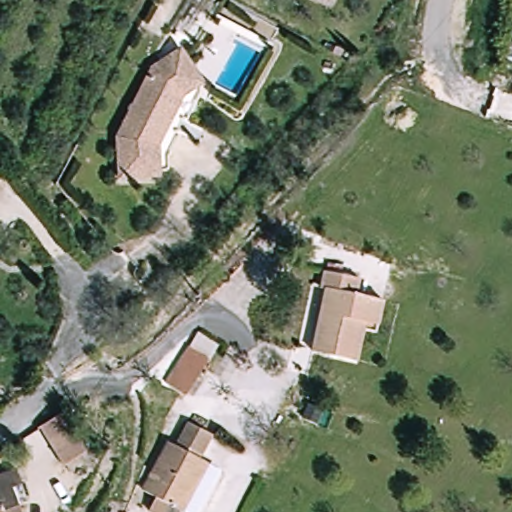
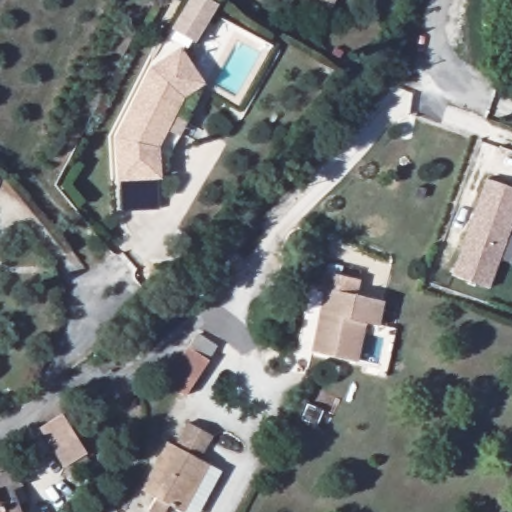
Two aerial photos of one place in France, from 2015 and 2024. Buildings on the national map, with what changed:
new [(195,44),(170,29),(188,0),(212,0),(218,4),(195,44)]
unchanged [(323,5),(314,0),(326,0),(323,5)]
unchanged [(157,172),(117,175),(117,167),(115,135),(151,69),(180,50),(200,84),(197,86),(180,96),(155,142),(156,167),(157,172)]
unchanged [(198,88),(199,92),(198,95),(162,162),(162,164),(159,166),(156,167),(155,142),(180,96),(197,86),(198,88)]
new [(487,177),(512,185),(512,220),(489,286),(452,274),(487,177)]
unchanged [(324,290),(320,288),(326,270),(359,281),(355,295),(380,305),(372,328),(353,322),(341,360),(305,347),(324,290)]
unchanged [(165,385),(197,335),(217,349),(209,360),(187,398),(165,385)]
unchanged [(68,412),(95,460),(65,473),(42,428),(68,412)]
unchanged [(170,445),(183,420),(207,432),(193,457),(203,462),(177,512),(137,491),(165,442),(170,445)]
unchanged [(15,487),(23,512),(0,512),(0,474),(21,467),(25,483),(15,487)]

